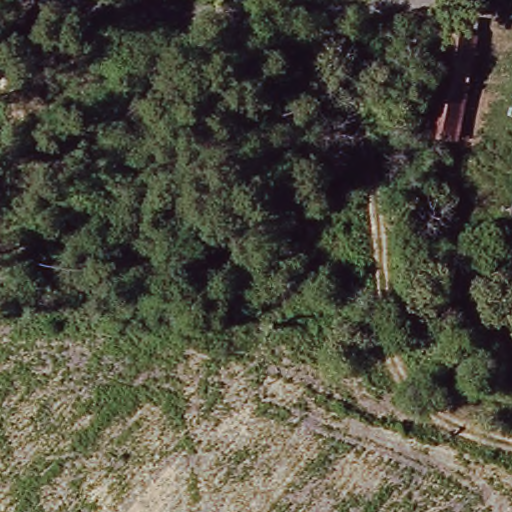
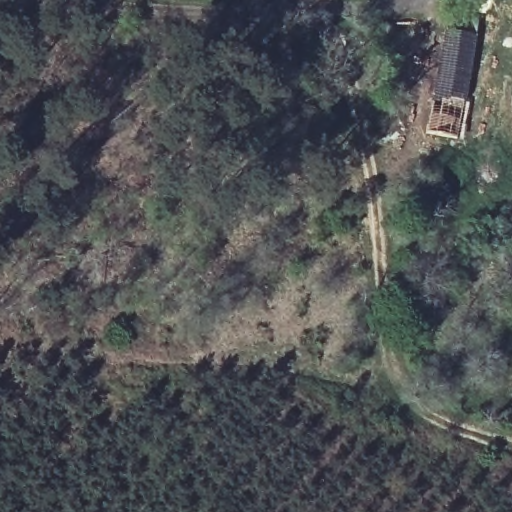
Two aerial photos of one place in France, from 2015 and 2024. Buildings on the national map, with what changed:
unchanged [(444,36),(476,41),(458,144),(426,138),(444,36)]

